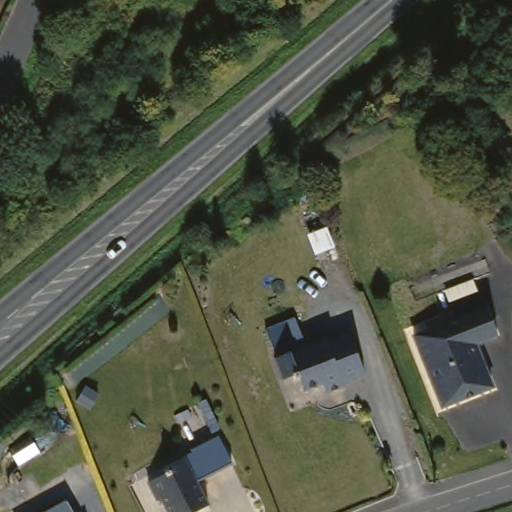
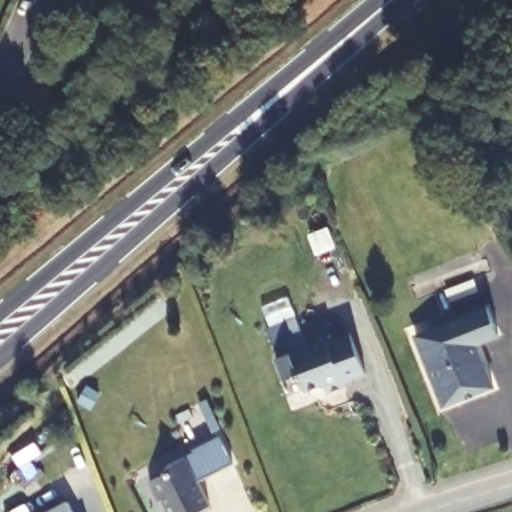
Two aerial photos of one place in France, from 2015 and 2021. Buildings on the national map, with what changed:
unchanged [(443,290),(477,278),(482,296),(449,307),(443,290)]
unchanged [(494,311),(502,337),(482,342),(496,389),(436,407),(415,333),(494,311)]
unchanged [(278,357),(267,329),(295,318),(306,346),(327,338),(327,341),(350,332),(366,373),(343,382),(345,386),(327,392),(323,383),(305,390),(300,377),(296,378),(295,375),(284,379),(276,358),(278,357)]
unchanged [(197,481),(207,506),(192,512),(167,512),(161,496),(157,497),(149,478),(170,469),(167,463),(195,452),(194,450),(222,438),(234,466),(197,481)]
unchanged [(70,512),(46,512),(63,502),(70,512)]

